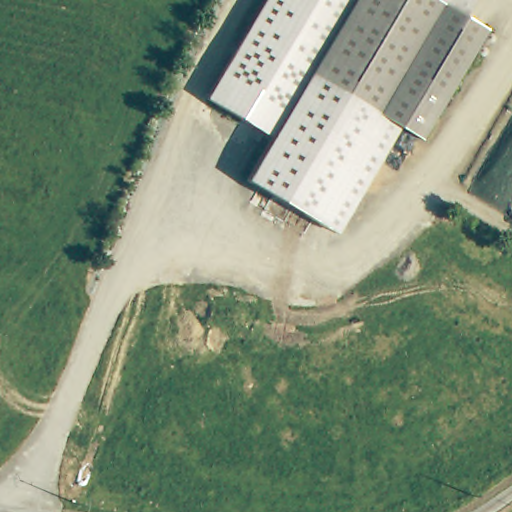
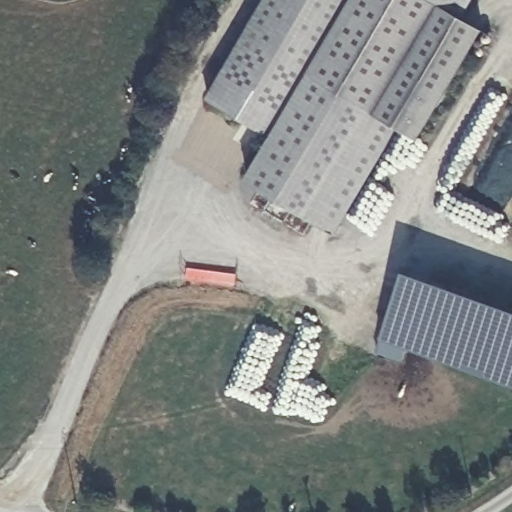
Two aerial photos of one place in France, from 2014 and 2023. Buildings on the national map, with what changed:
unchanged [(356,0),(317,70),(403,121),(336,234),(246,180),(271,139),(206,99),(264,0),(356,0)]
unchanged [(422,133),(317,70),(356,0),(440,0),(474,0),(467,15),(486,26),(422,133)]
new [(403,358),(378,350),(406,270),(512,308),(512,384),(406,348),(403,358)]

